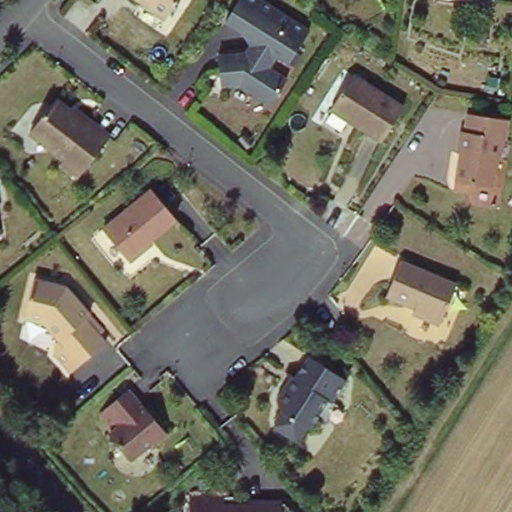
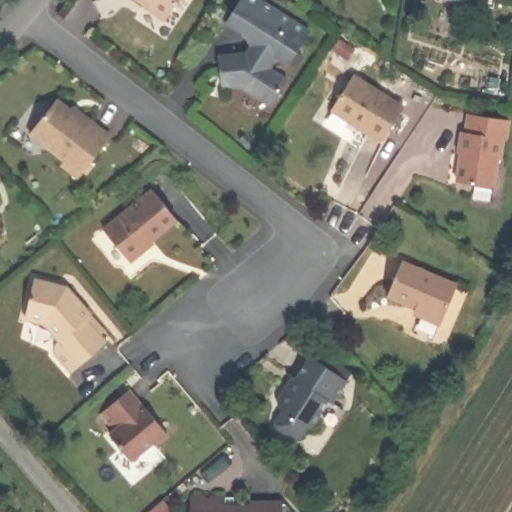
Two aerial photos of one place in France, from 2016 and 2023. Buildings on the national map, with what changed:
unchanged [(167,19),(159,19),(147,11),(149,9),(137,0),(180,0),(167,19)]
unchanged [(310,34),(291,64),(279,56),(270,71),(288,84),(273,109),(240,89),(220,89),(219,60),(247,57),(251,50),(244,36),(228,24),(243,0),(258,0),(310,34)]
unchanged [(404,108),(382,142),(331,110),(353,75),(404,108)]
unchanged [(55,95),(90,123),(93,120),(111,133),(79,175),(60,161),(64,156),(29,127),(55,95)]
unchanged [(511,125),(508,145),(504,145),(500,164),(498,164),(492,191),(455,183),(460,155),(457,155),(462,134),(467,136),(471,116),(511,125)]
unchanged [(152,190),(176,218),(145,244),(147,247),(130,261),(105,230),(152,190)]
unchanged [(2,207),(0,207),(0,192),(2,207)]
unchanged [(0,238),(0,220),(2,238),(0,238)]
unchanged [(459,287),(440,326),(419,316),(422,312),(387,297),(402,262),(459,287)]
unchanged [(64,287),(90,316),(86,320),(107,344),(72,375),(55,356),(54,344),(59,340),(44,324),(25,319),(33,282),(64,287)]
unchanged [(347,377),(332,399),(328,397),(308,425),(306,423),(299,434),(290,435),(273,425),(272,417),(267,414),(265,405),(288,372),(292,374),(297,367),(299,368),(310,352),(347,377)]
unchanged [(129,385),(140,400),(138,401),(141,403),(143,401),(167,429),(154,440),(152,437),(129,455),(110,431),(114,426),(100,409),(129,385)]
unchanged [(226,510),(251,509),(251,506),(285,508),(285,512),(191,512),(191,503),(226,504),(226,510)]

